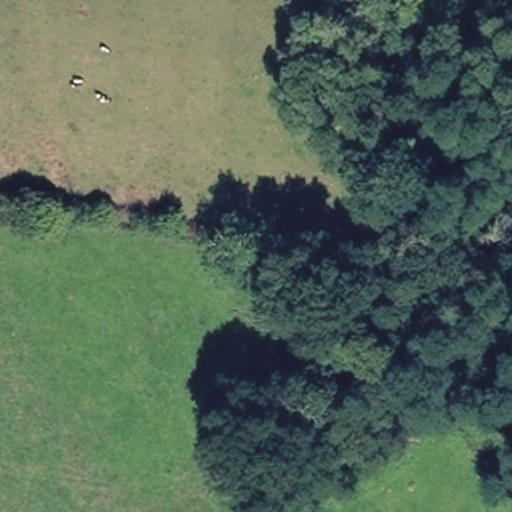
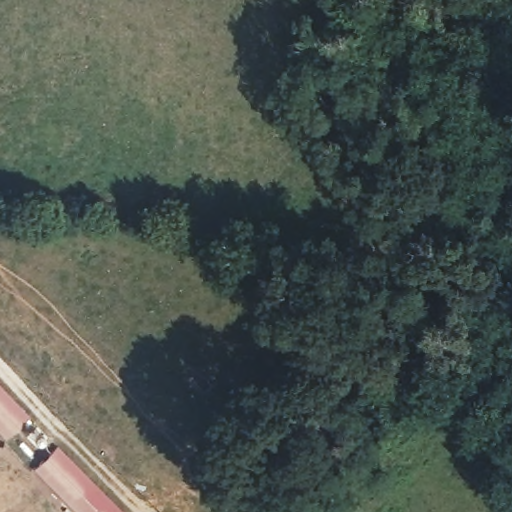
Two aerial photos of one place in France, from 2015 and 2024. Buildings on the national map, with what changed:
new [(0,384),(29,414),(6,436),(0,430),(0,384)]
new [(123,512),(76,512),(33,468),(57,445),(123,512)]

